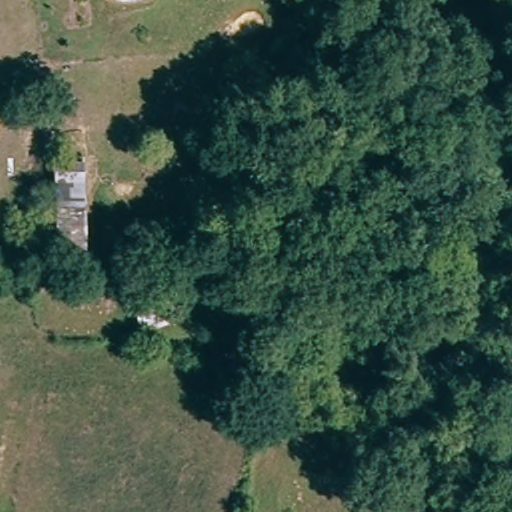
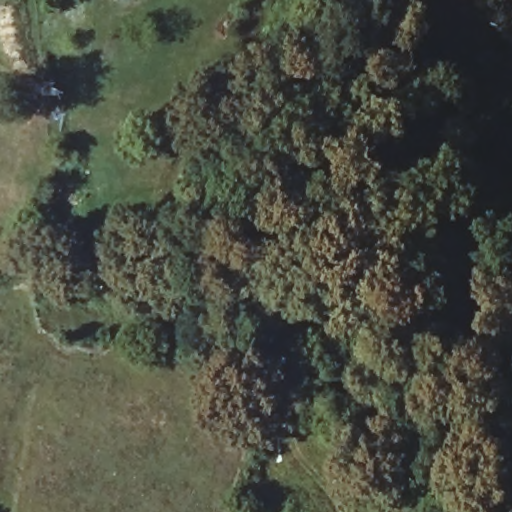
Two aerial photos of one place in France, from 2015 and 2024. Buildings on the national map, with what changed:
unchanged [(63,251),(60,169),(85,167),(88,251),(63,251)]

